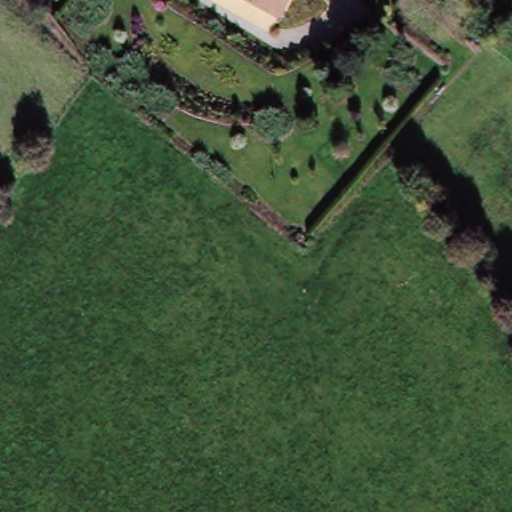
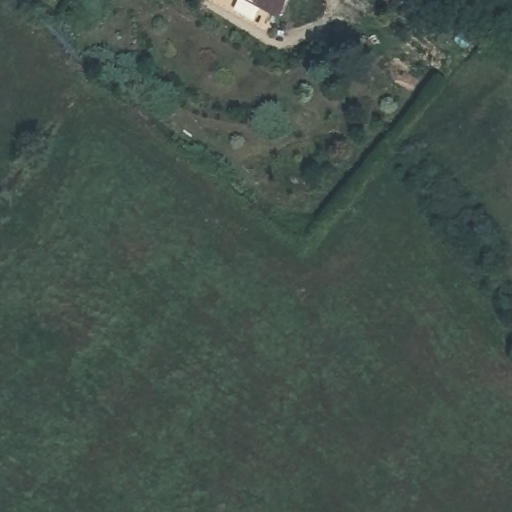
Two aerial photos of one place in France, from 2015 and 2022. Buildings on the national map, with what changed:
unchanged [(284,0),(275,19),(237,0),(284,0)]

